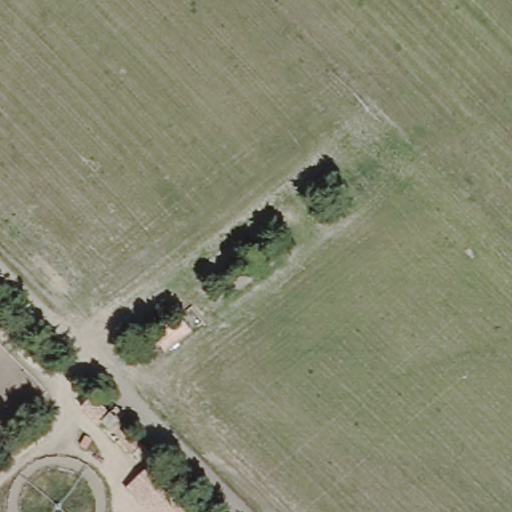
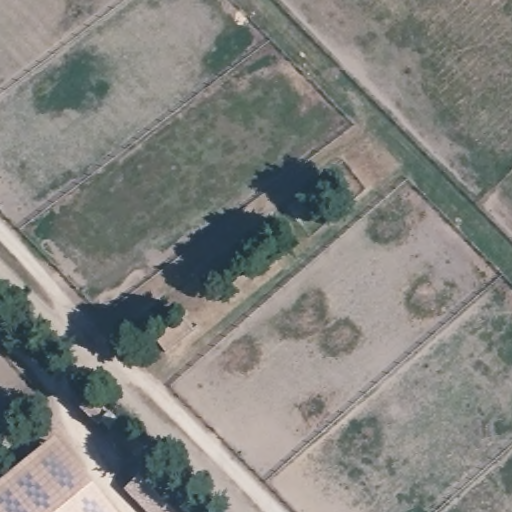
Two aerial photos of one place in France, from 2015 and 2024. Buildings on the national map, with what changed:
new [(0,479),(53,436),(118,512),(0,512),(0,479)]
new [(199,512),(147,512),(123,488),(151,462),(199,512)]

